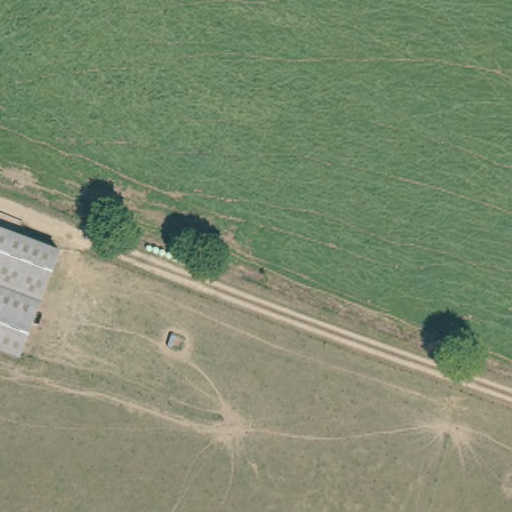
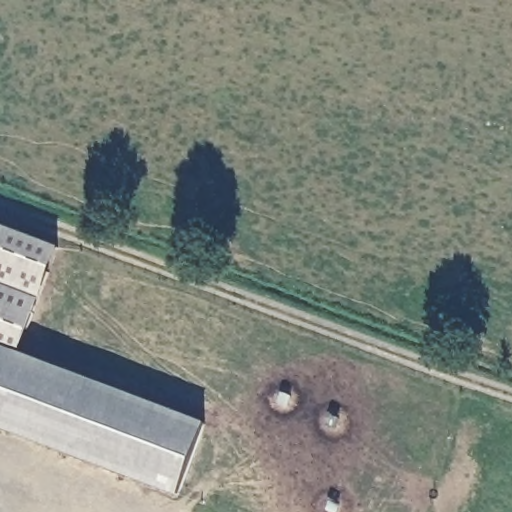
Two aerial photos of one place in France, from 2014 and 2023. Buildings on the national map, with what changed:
unchanged [(63,244),(26,340),(0,331),(0,210),(66,235),(63,244)]
new [(22,353),(207,423),(180,496),(0,429),(0,331),(26,340),(22,353)]

